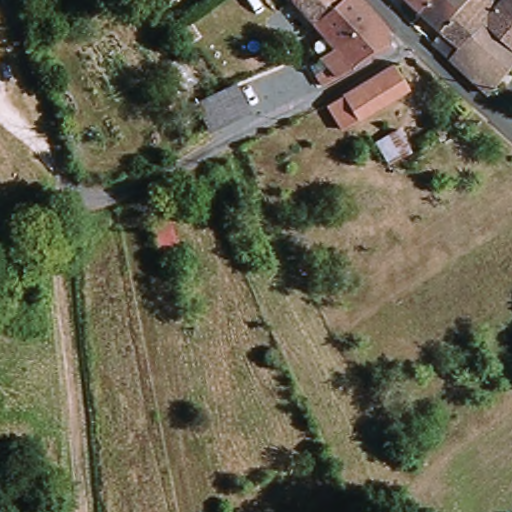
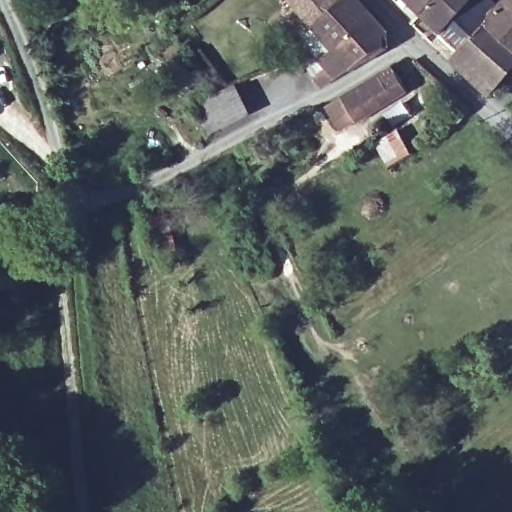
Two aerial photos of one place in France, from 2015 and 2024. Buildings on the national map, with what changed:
unchanged [(294,0),(343,0),(315,23),(294,0)]
unchanged [(360,0),(385,28),(383,47),(317,87),(307,68),(341,50),(315,23),(343,0),(360,0)]
unchanged [(439,0),(426,15),(409,0),(439,0)]
unchanged [(473,0),(446,35),(426,15),(439,0),(473,0)]
unchanged [(473,0),(486,0),(495,9),(484,24),(461,51),(446,35),(473,0)]
unchanged [(500,4),(506,6),(511,0),(512,0),(512,48),(484,24),(495,9),(500,4)]
unchanged [(512,73),(493,96),(453,60),(461,51),(484,24),(512,48),(512,73)]
unchanged [(347,100),(397,73),(409,94),(360,121),(344,130),(332,108),(347,100)]
unchanged [(217,130),(205,105),(236,89),(247,114),(217,130)]
unchanged [(476,114),(457,128),(448,118),(463,101),(476,114)]

